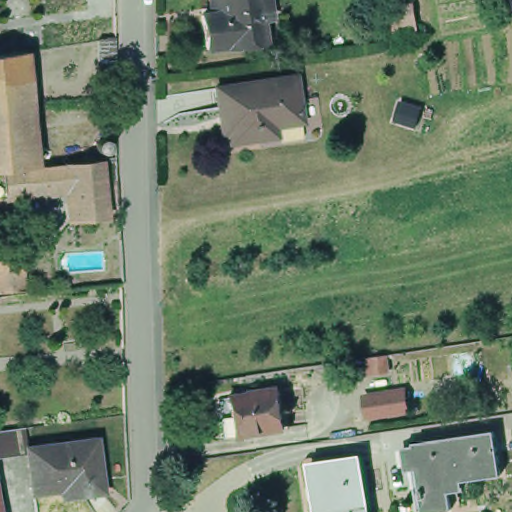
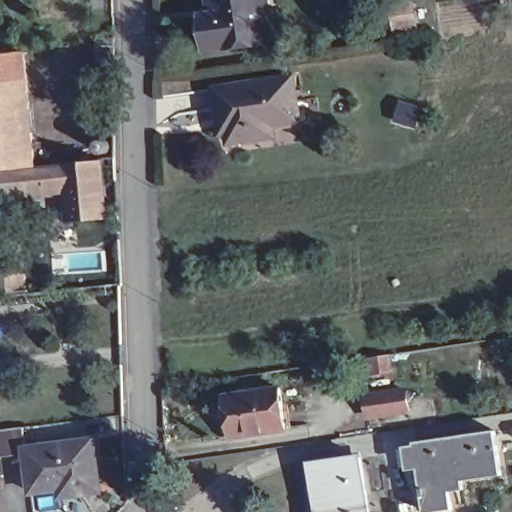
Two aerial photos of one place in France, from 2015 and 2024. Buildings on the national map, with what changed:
unchanged [(226,47),(225,44),(204,48),(200,14),(208,13),(206,0),(267,0),(270,17),(258,19),(261,41),(226,47)]
unchanged [(392,36),(388,9),(402,7),(409,5),(412,21),(405,22),(407,33),(392,36)]
unchanged [(115,65),(97,65),(96,39),(115,37),(115,65)]
unchanged [(27,132),(46,130),(50,163),(30,165),(0,168),(0,53),(19,52),(27,132)]
unchanged [(254,138),(225,143),(222,125),(220,108),(214,109),(211,88),(290,76),(296,114),(297,121),(269,126),(270,136),(254,138)]
unchanged [(61,163),(95,160),(101,217),(66,221),(63,189),(61,165),(61,163)]
unchanged [(63,189),(0,195),(0,171),(61,165),(63,189)]
unchanged [(366,396),(405,390),(409,410),(369,416),(366,396)]
unchanged [(279,393),(285,434),(231,442),(225,401),(279,393)]
unchanged [(25,426),(27,446),(97,437),(102,482),(104,489),(62,495),(61,488),(33,492),(28,452),(11,455),(0,456),(0,429),(8,428),(25,426)]
unchanged [(409,451),(413,450),(412,446),(494,435),(501,480),(461,486),(463,498),(450,500),(452,512),(422,512),(416,472),(412,474),(409,451)]
unchanged [(317,512),(317,511),(314,512),(313,507),(316,507),(309,460),(359,453),(368,512),(317,512)]

